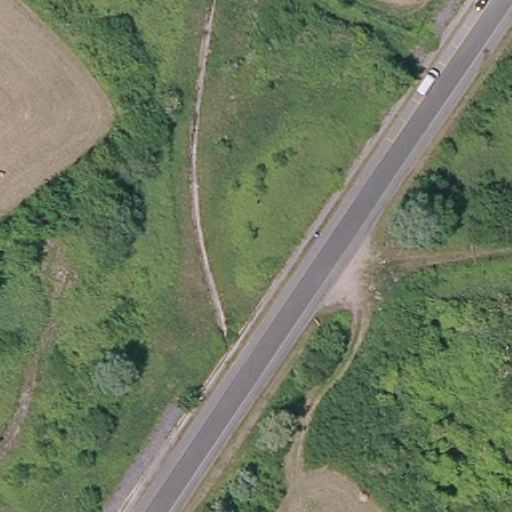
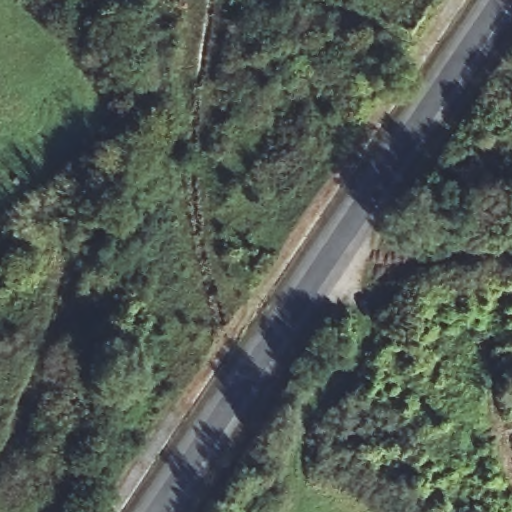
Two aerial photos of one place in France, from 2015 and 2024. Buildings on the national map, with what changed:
unchanged [(0,263),(0,245),(12,236),(30,257),(10,274),(0,263)]

